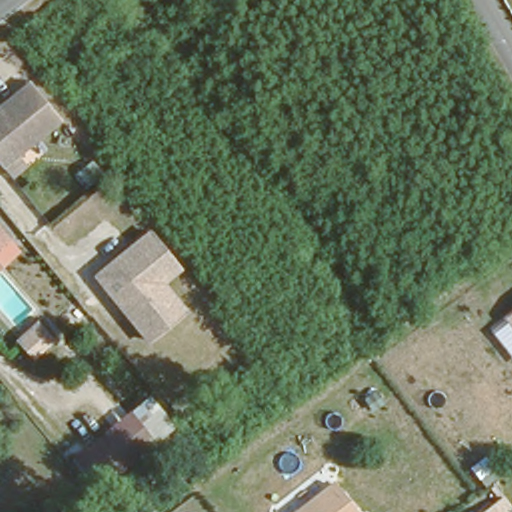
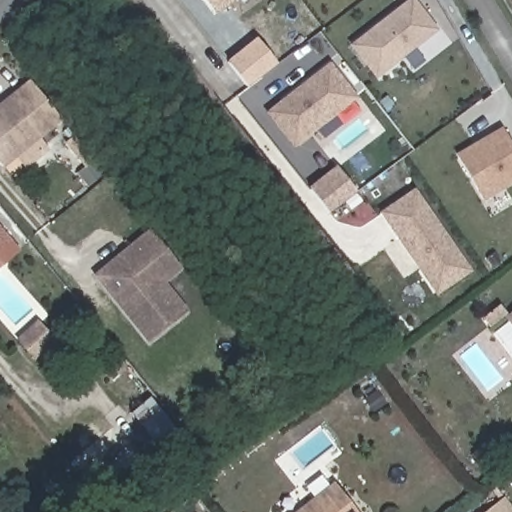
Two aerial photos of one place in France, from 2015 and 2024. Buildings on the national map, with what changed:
new [(218,15),(207,0),(237,0),(218,15)]
new [(412,0),(416,0),(439,29),(380,76),(356,45),(412,0)]
new [(332,67),(358,98),(300,145),(275,115),(332,67)]
unchanged [(0,163),(0,103),(29,79),(64,121),(3,166),(0,163)]
new [(503,129),(512,143),(512,185),(487,200),(460,156),(503,129)]
unchanged [(87,188),(75,172),(92,160),(105,176),(87,188)]
new [(340,166),(360,190),(332,211),(313,188),(340,166)]
new [(415,192),(471,271),(439,295),(383,215),(415,192)]
new [(0,267),(0,226),(20,251),(0,267)]
unchanged [(165,283),(188,311),(146,342),(92,273),(147,230),(181,270),(165,283)]
unchanged [(512,315),(512,324),(507,318),(512,315)]
unchanged [(50,341),(32,356),(20,342),(39,327),(50,341)]
unchanged [(151,396),(179,428),(156,446),(129,414),(151,396)]
unchanged [(127,412),(129,414),(156,446),(100,491),(72,457),(127,412)]
unchanged [(359,512),(295,512),(335,481),(359,512)]
unchanged [(498,512),(483,512),(492,505),(498,512)]

